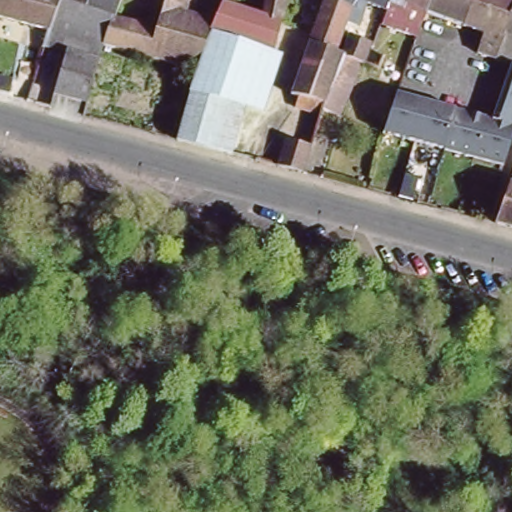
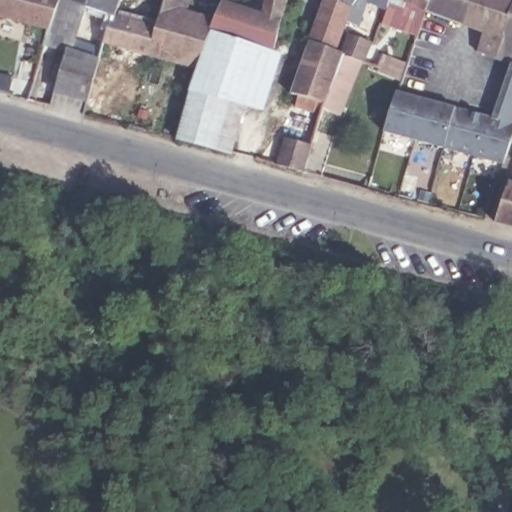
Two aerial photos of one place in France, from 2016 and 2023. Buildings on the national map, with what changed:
unchanged [(123,0),(117,14),(106,43),(88,102),(54,93),(65,51),(47,45),(52,33),(0,19),(0,0),(123,0)]
unchanged [(168,0),(192,0),(188,11),(205,16),(207,8),(220,11),(212,31),(197,68),(151,55),(160,26),(168,0)]
unchanged [(225,0),(238,0),(243,1),(242,8),(265,15),(268,0),(288,0),(275,51),(212,31),(220,11),(225,0)]
unchanged [(327,112),(302,103),(304,96),(297,93),(331,0),(346,0),(360,5),(354,20),(384,31),(380,40),(350,113),(329,107),(327,112)]
unchanged [(346,0),(363,0),(360,5),(346,0)]
unchanged [(375,7),(368,0),(398,0),(392,14),(375,7)]
unchanged [(398,0),(438,0),(433,11),(425,35),(390,22),(392,14),(398,0)]
unchanged [(479,0),(470,24),(433,11),(438,0),(479,0)]
unchanged [(512,0),(512,27),(510,33),(502,57),(483,50),(489,31),(470,24),(479,0),(512,0)]
unchanged [(117,14),(160,26),(151,55),(106,43),(117,14)]
unchanged [(512,34),(510,33),(512,27),(512,34)]
unchanged [(197,68),(212,31),(275,51),(283,54),(267,110),(245,104),(192,89),(197,68)]
unchanged [(512,34),(512,61),(502,57),(510,33),(512,34)]
unchanged [(10,93),(0,90),(0,72),(15,76),(10,93)]
unchanged [(498,117),(503,105),(512,80),(512,155),(509,163),(462,151),(475,111),(498,117)]
unchanged [(192,89),(245,104),(232,154),(177,140),(192,89)]
unchanged [(462,151),(435,144),(415,139),(390,132),(392,120),(402,92),(425,98),(445,103),(475,111),(462,151)]
unchanged [(286,138),(312,145),(305,173),(277,165),(286,138)]
unchanged [(512,227),(497,223),(512,180),(512,227)]

